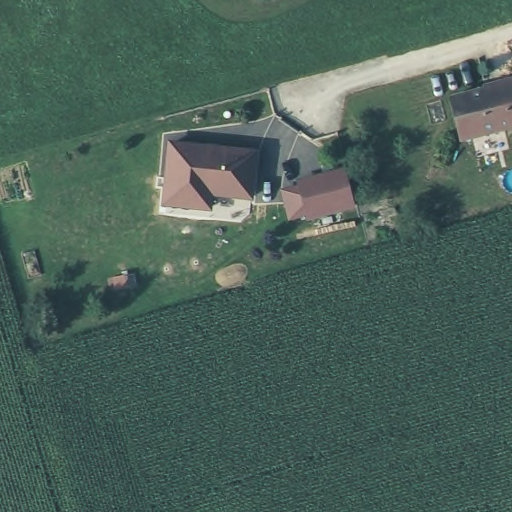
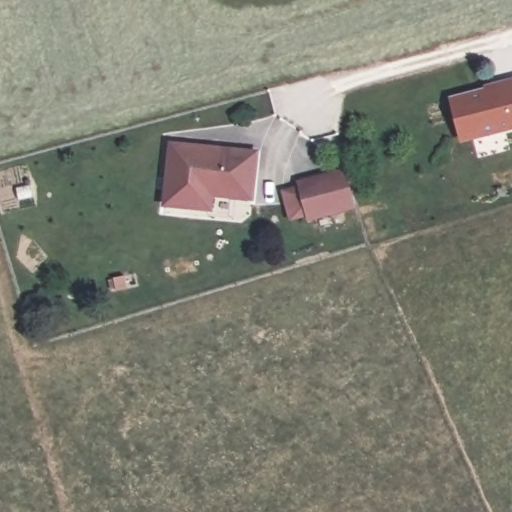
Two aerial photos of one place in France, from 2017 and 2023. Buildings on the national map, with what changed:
unchanged [(512,85),(512,127),(456,141),(447,98),(511,83),(512,85)]
unchanged [(248,156),(244,202),(207,198),(203,212),(158,209),(166,151),(248,156)]
unchanged [(308,221),(306,215),(289,220),(281,191),(300,185),(298,179),(345,167),(356,208),(308,221)]
unchanged [(385,210),(390,227),(376,230),(372,213),(385,210)]

